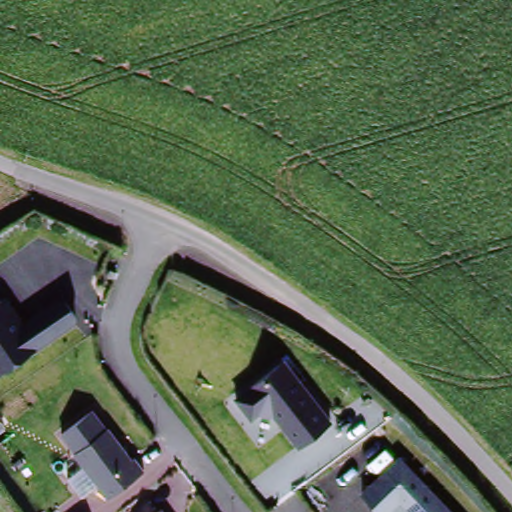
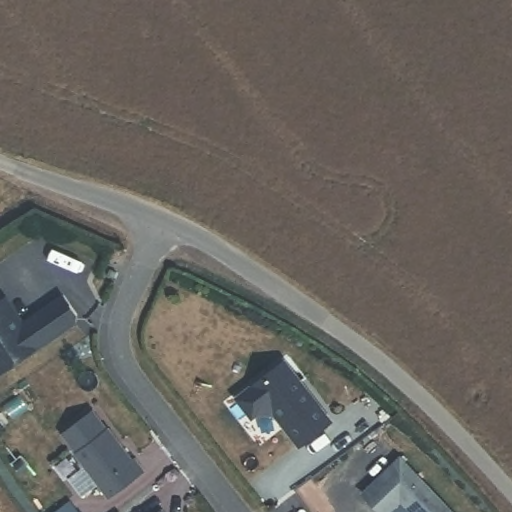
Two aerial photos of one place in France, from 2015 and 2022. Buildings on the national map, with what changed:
unchanged [(0,301),(11,295),(29,321),(68,292),(88,320),(2,374),(0,372),(0,301)]
unchanged [(271,408),(256,416),(242,394),(284,359),(333,419),(305,447),(271,408)]
unchanged [(129,460),(132,457),(142,474),(107,499),(73,452),(106,429),(129,460)]
unchanged [(403,456),(458,512),(411,512),(405,506),(397,512),(381,512),(367,498),(403,456)]
unchanged [(167,510),(169,512),(164,512),(167,510)]

